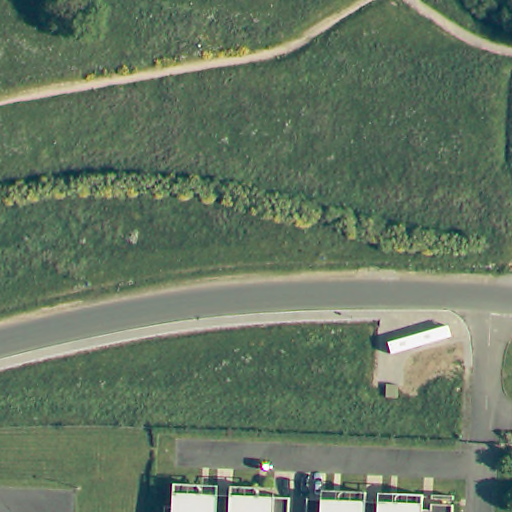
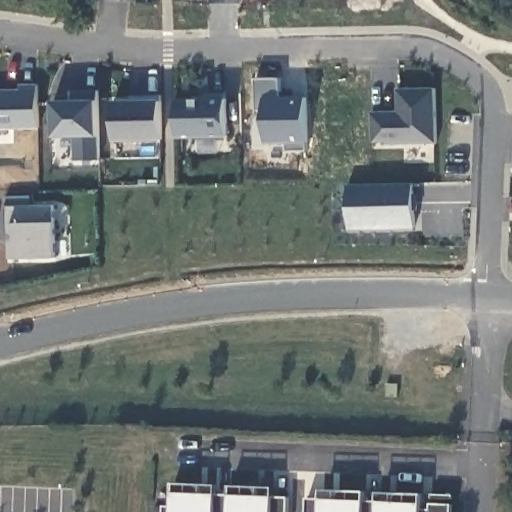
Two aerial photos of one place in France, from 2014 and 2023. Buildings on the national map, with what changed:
new [(0,130),(0,90),(21,90),(21,84),(39,85),(41,130),(0,130)]
new [(438,144),(389,145),(388,142),(373,142),(372,112),(399,111),(398,89),(438,89),(438,144)]
new [(99,101),(100,137),(101,161),(74,160),(75,137),(56,138),(55,101),(74,100),(73,90),(99,90),(99,101)]
new [(229,137),(177,139),(177,100),(208,100),(208,94),(227,93),(229,137)]
new [(164,140),(114,142),(114,101),(163,101),(164,140)]
new [(416,230),(350,230),(348,186),(415,185),(416,230)]
new [(34,206),(56,206),(56,222),(56,257),(13,258),(12,235),(6,235),(6,196),(34,196),(34,206)]
unchanged [(179,484),(202,484),(202,493),(235,495),(237,485),(255,486),(257,488),(258,490),(259,492),(260,494),(261,496),(293,498),(292,512),(170,512),(170,508),(178,508),(179,484)]
unchanged [(339,498),(339,495),(341,493),(343,490),(345,490),(364,493),(364,502),(397,505),(396,502),(397,499),(398,496),(399,495),(402,493),(422,496),(421,510),(433,510),(433,506),(451,508),(451,512),(309,512),(310,500),(339,502),(339,498)]
unchanged [(452,496),(453,502),(433,501),(433,495),(452,496)]

